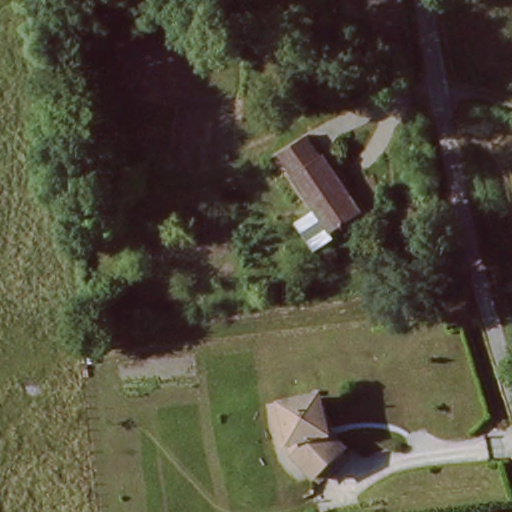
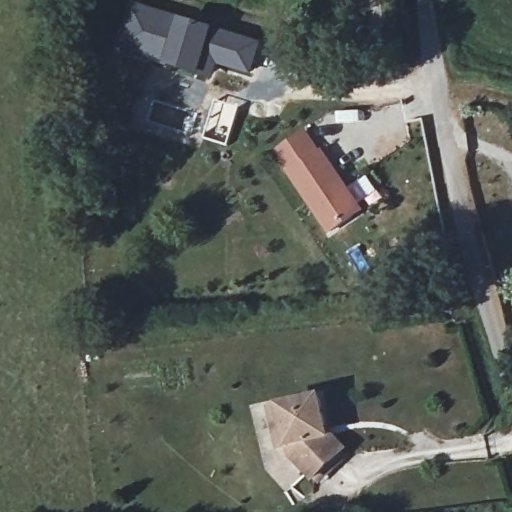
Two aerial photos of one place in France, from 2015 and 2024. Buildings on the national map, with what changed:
new [(131,0),(135,0),(263,41),(252,76),(218,66),(212,80),(170,67),(114,52),(131,0)]
new [(152,99),(192,111),(184,134),(145,121),(152,99)]
unchanged [(328,239),(279,155),(309,137),(325,165),(328,163),(362,219),(328,239)]
unchanged [(290,459),(278,409),(327,397),(336,436),(350,450),(321,478),(300,456),(290,459)]

